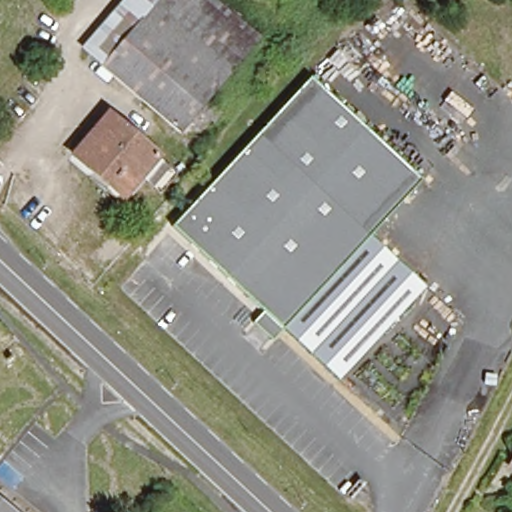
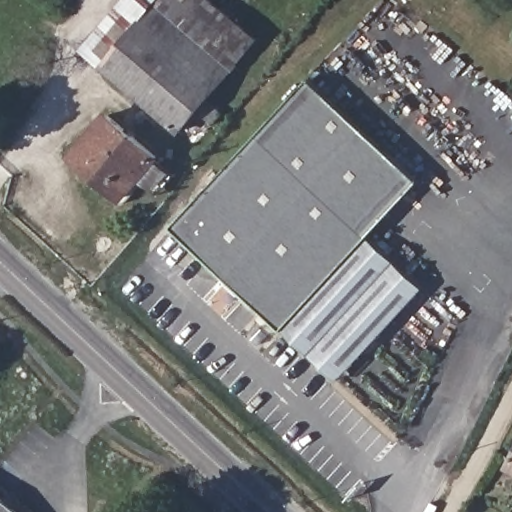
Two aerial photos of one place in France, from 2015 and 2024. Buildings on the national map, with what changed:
unchanged [(128,0),(211,0),(255,40),(173,142),(81,47),(128,0)]
unchanged [(170,221),(309,74),(421,182),(370,236),(282,328),(170,221)]
unchanged [(74,155),(109,113),(158,155),(123,197),(74,155)]
unchanged [(337,382),(282,328),(370,236),(425,290),(337,382)]
unchanged [(9,512),(0,512),(0,504),(9,512)]

